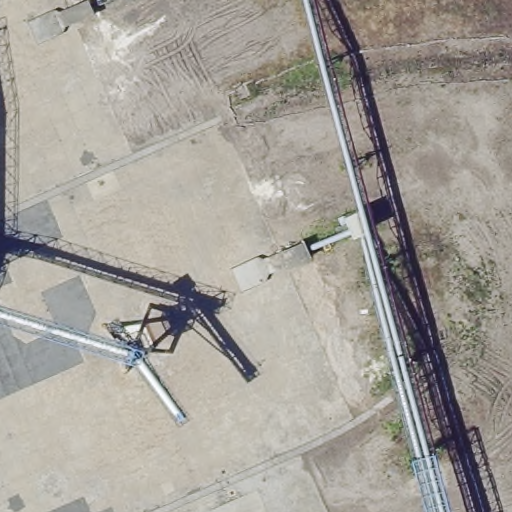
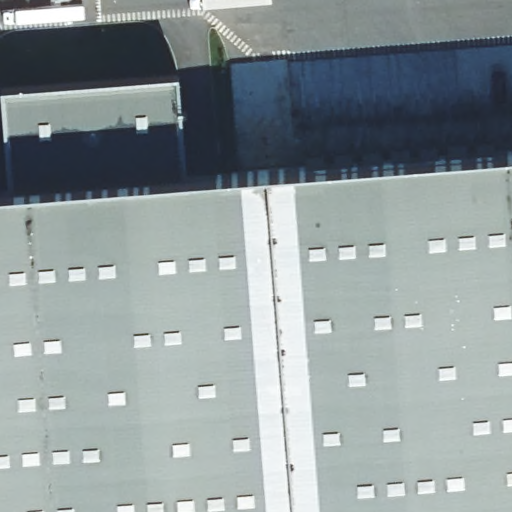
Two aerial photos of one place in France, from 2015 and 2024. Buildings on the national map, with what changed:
new [(0,165),(0,92),(175,81),(185,187),(512,162),(512,512),(0,512),(0,199),(4,199),(0,165)]

